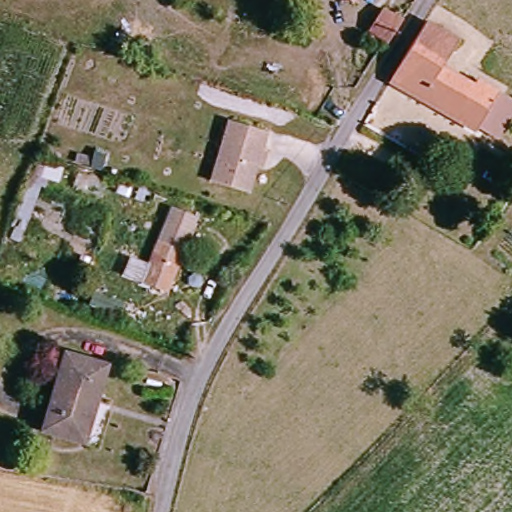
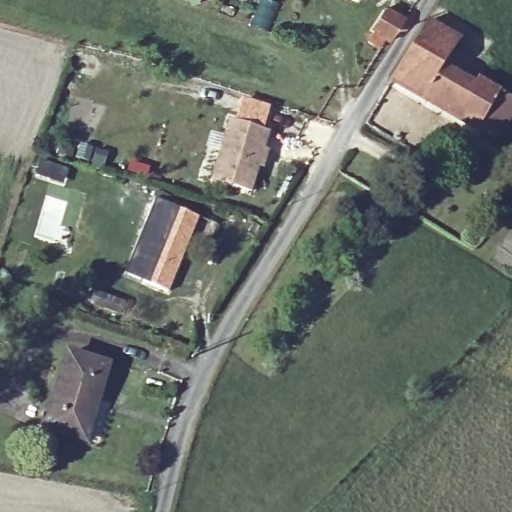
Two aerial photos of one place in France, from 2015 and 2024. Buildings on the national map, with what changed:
unchanged [(405,19),(388,48),(368,37),(384,9),(405,19)]
unchanged [(470,96),(476,91),(496,106),(472,140),(387,81),(426,26),(461,51),(444,74),(470,96)]
unchanged [(226,124),(265,134),(247,195),(209,184),(226,124)]
unchanged [(122,275),(129,259),(147,266),(169,207),(198,218),(166,292),(122,275)]
unchanged [(83,442),(42,430),(64,355),(105,367),(83,442)]

